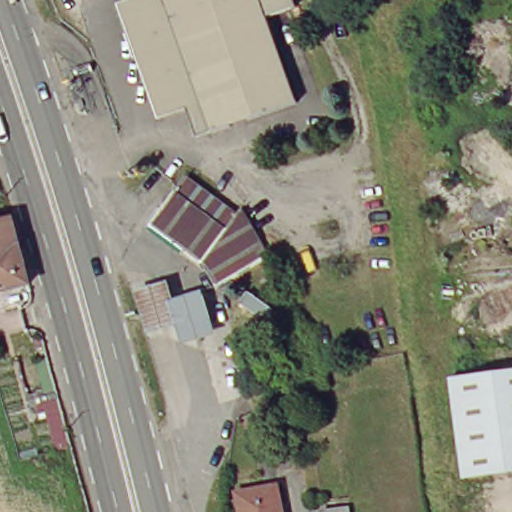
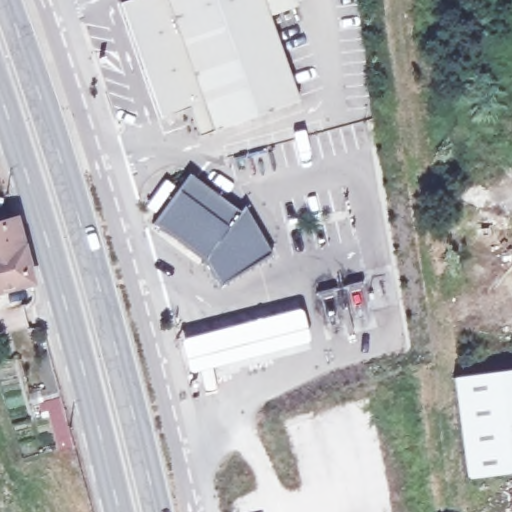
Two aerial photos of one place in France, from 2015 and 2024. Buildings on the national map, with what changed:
unchanged [(292,8),(264,18),(294,105),(211,134),(202,105),(157,121),(117,7),(137,0),(288,0),(292,8)]
unchanged [(240,213),(243,207),(271,255),(217,285),(204,260),(185,245),(184,247),(154,223),(164,211),(162,210),(190,173),(240,213)]
unchanged [(18,221),(35,285),(0,291),(0,224),(18,221)]
demolished [(172,277),(179,299),(205,294),(219,337),(185,345),(179,329),(152,335),(140,291),(172,277)]
new [(179,344),(179,343),(180,340),(182,339),(295,310),(297,310),(299,311),(300,313),(307,339),(307,340),(305,342),(305,343),(190,372),(188,371),(187,371),(185,368),(179,344)]
unchanged [(512,369),(512,470),(465,475),(454,377),(512,369)]
unchanged [(55,451),(48,426),(41,399),(55,395),(63,422),(70,448),(55,451)]
demolished [(275,487),(280,512),(237,512),(235,495),(275,487)]
demolished [(327,512),(352,509),(353,512),(327,512)]

